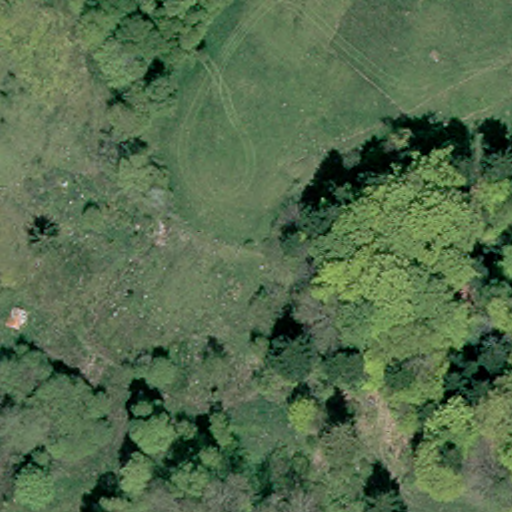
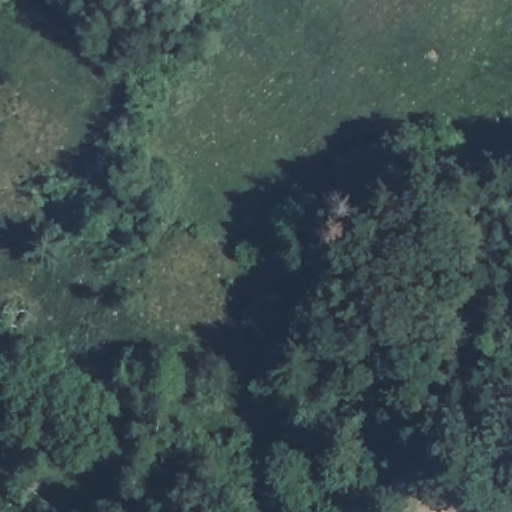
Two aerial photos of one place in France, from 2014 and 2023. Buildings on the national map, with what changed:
unchanged [(16,326),(3,320),(11,302),(24,308),(16,326)]

